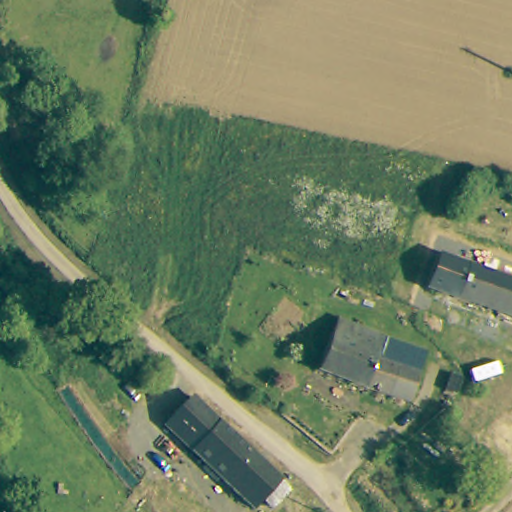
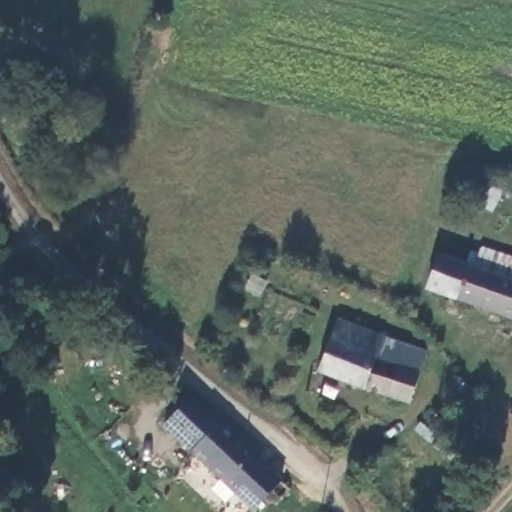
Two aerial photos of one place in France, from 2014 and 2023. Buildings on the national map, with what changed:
unchanged [(450,261),(496,275),(512,281),(512,313),(439,289),(450,261)]
unchanged [(411,405),(317,373),(337,323),(381,340),(373,362),(420,378),(411,405)]
unchanged [(373,362),(381,340),(410,350),(427,356),(420,378),(373,362)]
unchanged [(282,492),(281,494),(281,495),(280,496),(280,497),(278,498),(277,499),(276,499),(275,499),(273,499),(272,499),(270,499),(270,498),(268,497),(267,496),(266,495),(265,494),(265,493),(264,494),(256,503),(191,446),(200,437),(189,428),(176,416),(195,396),(209,407),(218,416),(295,482),(283,493),(282,492)]

